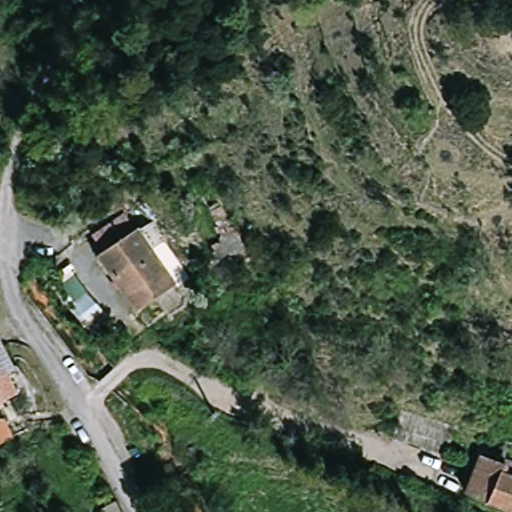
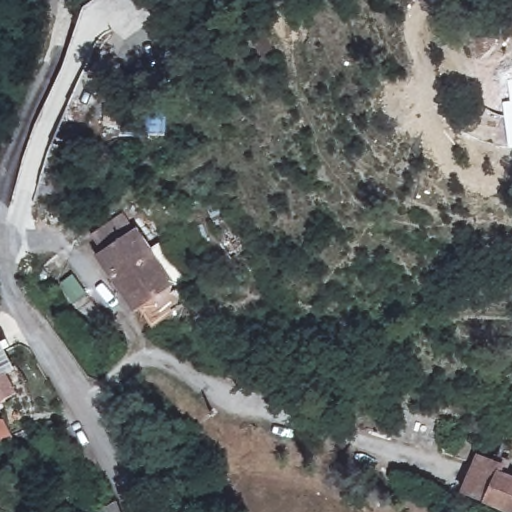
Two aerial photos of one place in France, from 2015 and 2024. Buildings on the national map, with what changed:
new [(503,103),(511,101),(508,80),(512,79),(512,148),(510,148),(503,103)]
unchanged [(99,251),(90,232),(127,210),(137,228),(154,217),(188,277),(176,281),(185,302),(165,311),(156,297),(135,309),(99,251)]
unchanged [(18,360),(10,364),(22,386),(10,393),(0,399),(0,327),(18,360)]
unchanged [(442,444),(395,427),(401,408),(449,426),(442,444)]
unchanged [(479,457),(497,465),(501,455),(512,460),(512,508),(465,487),(479,457)]
unchanged [(121,512),(111,497),(125,488),(136,505),(127,512),(121,512)]

